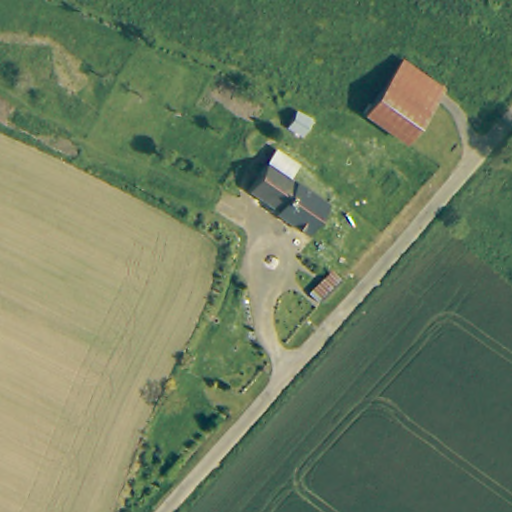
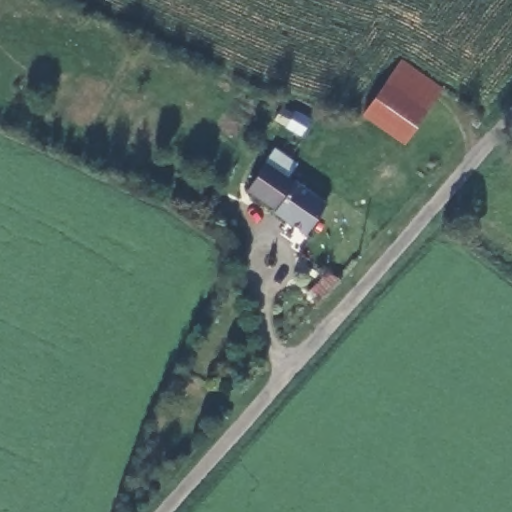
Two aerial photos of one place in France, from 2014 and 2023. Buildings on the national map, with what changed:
unchanged [(441,94),(424,117),(383,90),(391,80),(400,67),(441,94)]
unchanged [(383,90),(424,117),(403,147),(362,120),(383,90)]
unchanged [(302,128),(291,122),(297,112),(308,117),(302,128)]
unchanged [(326,202),(306,235),(276,216),(279,213),(246,191),(265,165),(275,150),(295,164),(286,177),(298,185),(326,202)]
unchanged [(314,295),(329,275),(345,281),(325,305),(314,295)]

